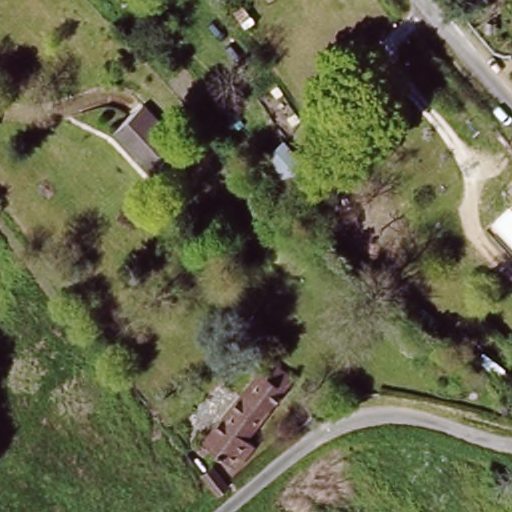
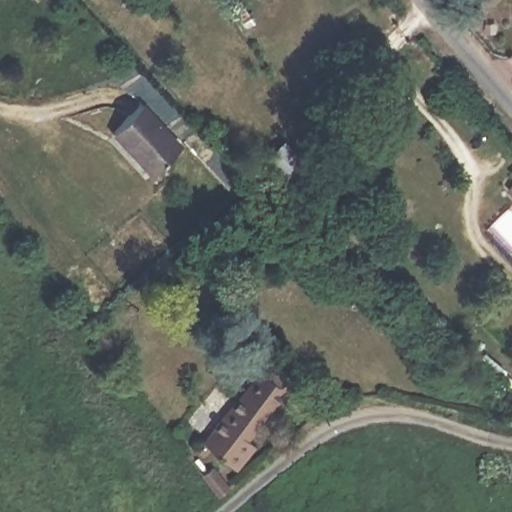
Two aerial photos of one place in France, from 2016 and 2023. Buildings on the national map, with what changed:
unchanged [(250,22),(243,28),(231,12),(239,6),(250,22)]
unchanged [(181,145),(154,170),(115,127),(143,102),(181,145)]
unchanged [(308,165),(282,188),(260,161),(285,138),(308,165)]
unchanged [(512,185),(512,196),(506,191),(512,185)]
unchanged [(297,376),(243,440),(251,447),(231,469),(201,443),(245,392),(247,394),(271,365),(273,367),(278,361),(297,376)]
unchanged [(226,491),(215,500),(200,480),(211,471),(226,491)]

